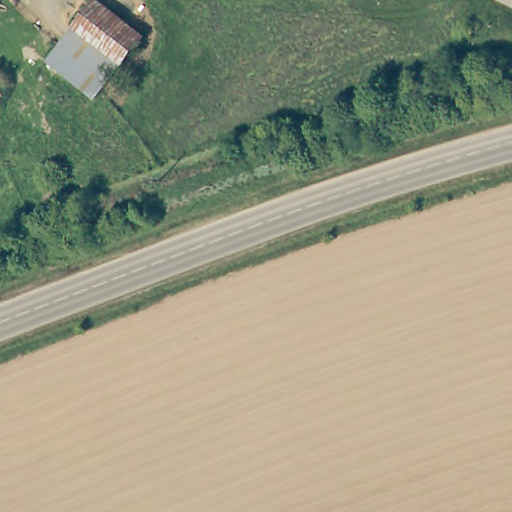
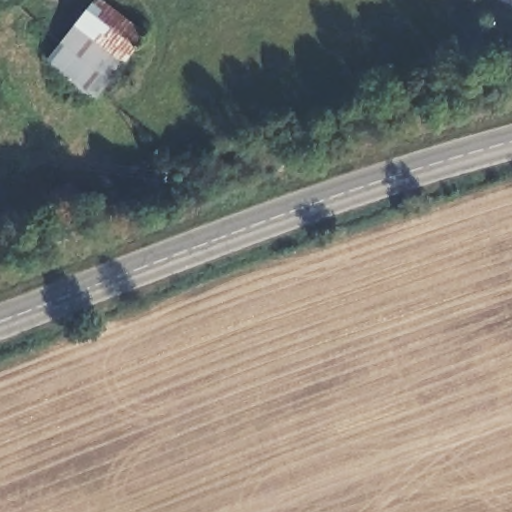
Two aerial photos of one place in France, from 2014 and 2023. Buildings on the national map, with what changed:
unchanged [(104,99),(54,65),(96,1),(146,34),(104,99)]

